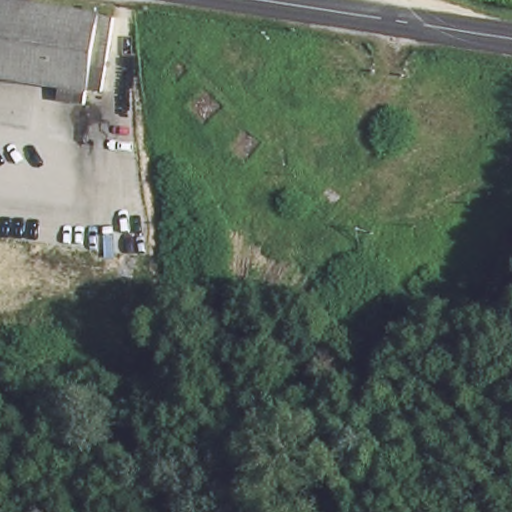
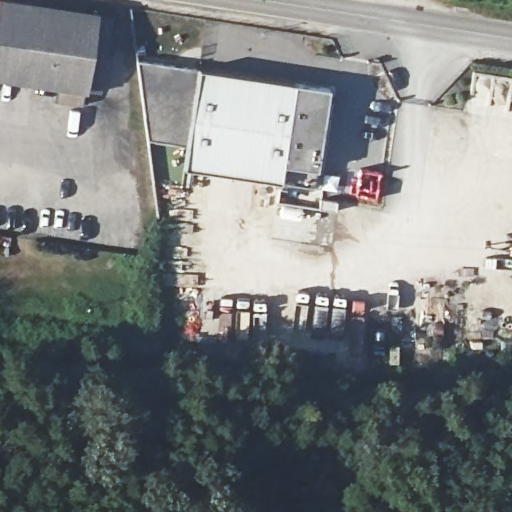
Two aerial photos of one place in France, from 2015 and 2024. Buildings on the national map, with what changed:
unchanged [(53,88),(56,73),(0,65),(0,0),(25,0),(93,10),(108,12),(98,80),(83,77),(80,92),(53,88)]
new [(181,61),(195,63),(183,138),(148,133),(144,108),(135,54),(172,59),(181,61)]
new [(196,63),(326,84),(311,183),(181,162),(196,63)]

